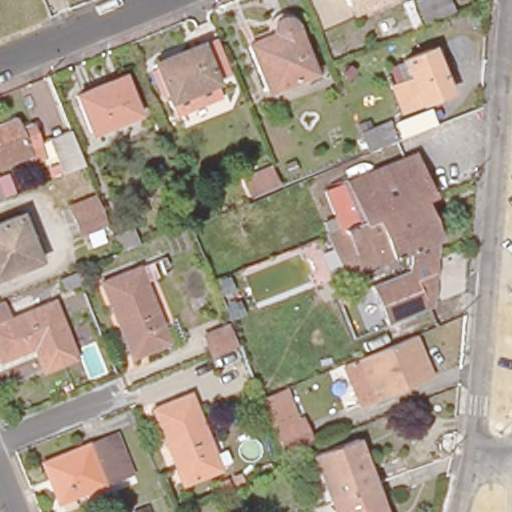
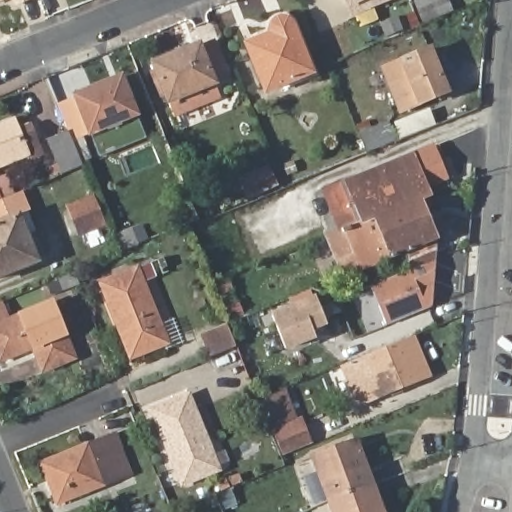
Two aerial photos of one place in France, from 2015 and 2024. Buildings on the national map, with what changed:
new [(0,0),(7,0),(0,3),(0,0)]
new [(11,0),(32,0),(14,8),(11,0)]
unchanged [(365,6),(353,11),(348,0),(401,0),(368,14),(365,6)]
unchanged [(429,0),(450,0),(455,11),(426,23),(418,5),(429,0)]
unchanged [(273,34),(270,28),(273,21),(276,19),(280,18),(285,17),(289,18),(292,21),(295,25),(313,71),(266,89),(248,45),(273,34)]
unchanged [(222,99),(176,117),(169,101),(153,63),(187,50),(200,45),(202,50),(215,82),(222,99)]
unchanged [(441,96),(418,106),(401,113),(391,86),(408,80),(401,64),(431,51),(443,82),(448,94),(441,96)]
unchanged [(84,136),(69,101),(103,87),(116,81),(118,88),(130,119),(84,136)]
unchanged [(16,128),(28,122),(36,142),(43,159),(31,164),(26,155),(0,166),(0,125),(13,120),(16,128)]
unchanged [(390,147),(362,159),(354,139),(384,128),(392,146),(390,147)]
unchanged [(47,140),(68,131),(81,166),(61,174),(47,140)]
unchanged [(421,199),(338,232),(323,193),(439,146),(454,185),(421,199)]
unchanged [(278,186),(249,199),(240,179),(270,166),(278,186)]
unchanged [(16,193),(1,199),(0,199),(0,177),(8,174),(16,193)]
unchanged [(437,238),(432,262),(409,271),(409,265),(401,262),(403,250),(397,252),(398,258),(392,260),(390,256),(344,274),(327,236),(338,232),(421,199),(437,238)]
unchanged [(96,221),(100,232),(71,244),(61,218),(89,206),(96,221)]
unchanged [(18,238),(25,235),(36,262),(0,276),(0,222),(10,219),(18,238)]
unchanged [(110,238),(129,231),(136,250),(116,257),(110,238)]
unchanged [(427,309),(383,327),(368,287),(407,272),(409,271),(432,262),(427,309)]
unchanged [(98,285),(135,271),(164,345),(127,359),(98,285)]
unchanged [(70,278),(75,290),(58,297),(53,285),(70,278)]
new [(287,351),(271,313),(315,295),(328,326),(314,332),(316,340),(287,351)]
unchanged [(50,308),(72,366),(44,376),(34,352),(0,364),(0,312),(5,325),(50,308)]
unchanged [(239,352),(211,363),(202,340),(230,329),(239,352)]
unchanged [(390,398),(387,392),(355,405),(338,366),(353,360),(391,346),(410,338),(412,337),(428,376),(398,388),(400,393),(390,398)]
unchanged [(283,388),(293,419),(298,417),(310,444),(282,454),(259,398),(283,388)]
unchanged [(151,413),(189,398),(219,473),(181,487),(151,413)]
unchanged [(326,505),(309,461),(352,445),(368,488),(326,505)]
unchanged [(47,470),(108,446),(124,485),(64,509),(47,470)]
unchanged [(376,512),(328,512),(326,505),(368,488),(376,512)]

